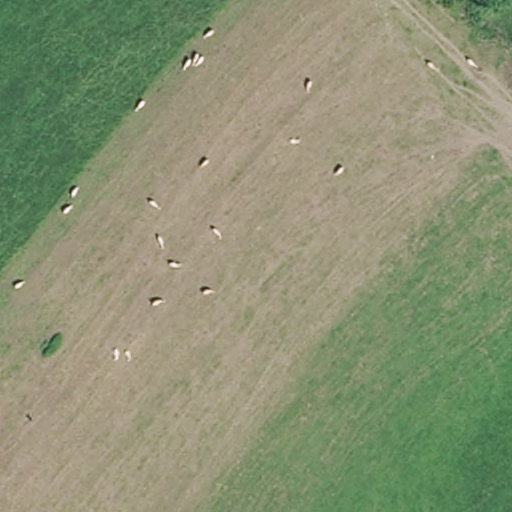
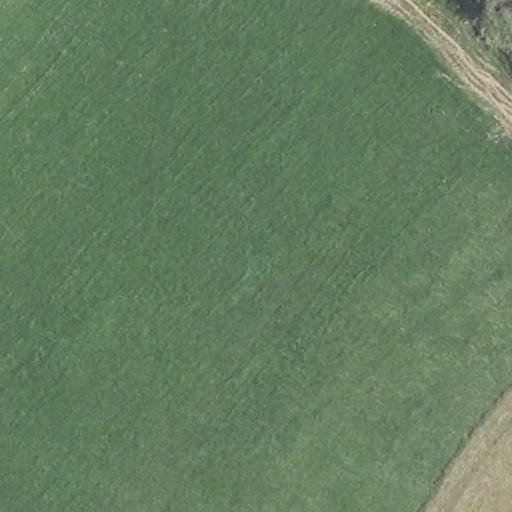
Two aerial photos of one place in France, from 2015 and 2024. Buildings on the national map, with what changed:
[]

